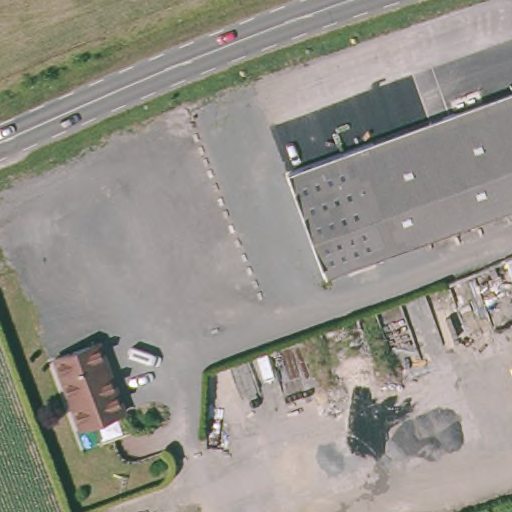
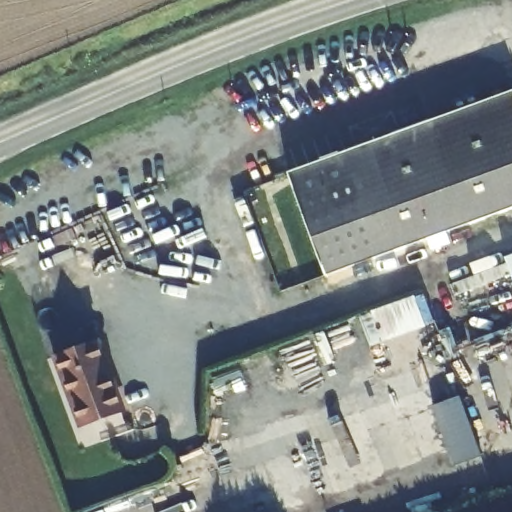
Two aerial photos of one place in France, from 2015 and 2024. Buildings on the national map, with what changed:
unchanged [(511,87),(512,91),(512,209),(323,281),(284,171),(511,87)]
unchanged [(500,259),(512,255),(512,292),(511,289),(500,259)]
unchanged [(48,360),(96,342),(107,370),(102,371),(119,414),(80,430),(64,387),(58,389),(48,360)]
new [(484,456),(455,467),(432,407),(460,396),(484,456)]

